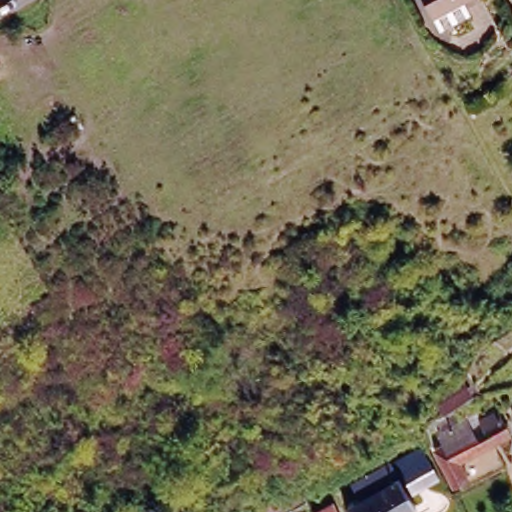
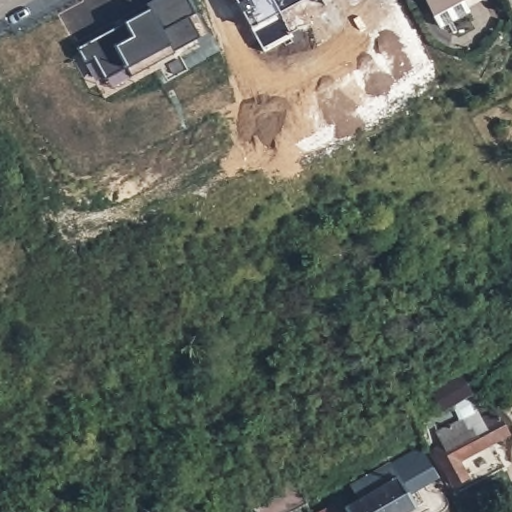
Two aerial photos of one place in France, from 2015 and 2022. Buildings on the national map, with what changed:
new [(112,26),(118,36),(127,31),(122,21),(146,7),(143,2),(147,0),(187,0),(193,11),(187,14),(198,34),(172,49),(172,51),(130,76),(125,67),(103,79),(92,58),(83,62),(75,48),(112,26)]
unchanged [(440,26),(432,13),(425,0),(461,0),(467,11),(440,26)]
unchanged [(462,395),(438,410),(427,391),(452,377),(462,395)]
unchanged [(458,479),(440,447),(451,441),(444,428),(480,407),(485,416),(508,402),(512,408),(512,431),(491,442),(465,457),(473,472),(458,479)]
unchanged [(420,462),(438,491),(408,507),(411,512),(355,512),(361,509),(353,493),(370,485),(372,488),(420,462)]
unchanged [(308,512),(269,512),(300,496),(308,512)]
unchanged [(337,512),(314,512),(332,502),(337,512)]

